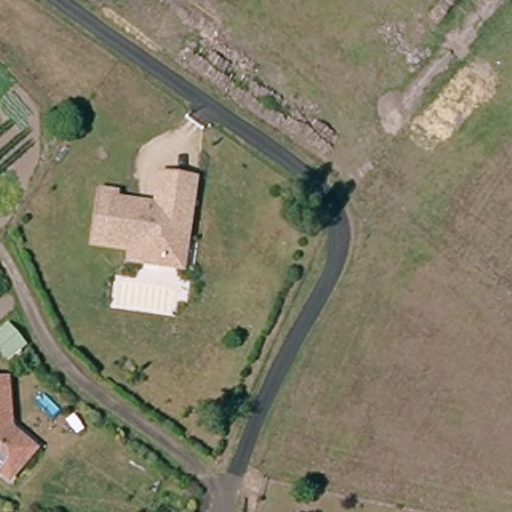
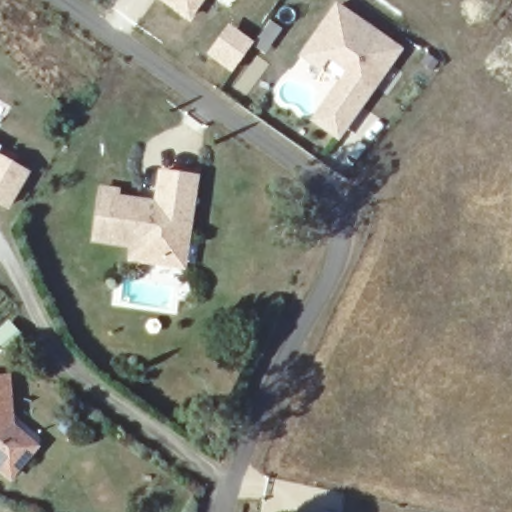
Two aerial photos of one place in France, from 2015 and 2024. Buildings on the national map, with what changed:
new [(190,19),(160,0),(203,0),(190,19)]
new [(339,140),(309,120),(341,78),(300,53),(335,2),(403,48),(339,140)]
new [(253,43),(231,72),(205,54),(228,24),(253,43)]
new [(8,209),(0,205),(0,155),(29,171),(8,209)]
unchanged [(162,262),(139,259),(131,258),(133,243),(95,237),(103,187),(119,189),(118,196),(146,200),(149,204),(147,216),(155,217),(162,171),(197,176),(198,176),(189,235),(184,266),(162,262)]
unchanged [(22,349),(16,354),(6,362),(0,354),(0,342),(0,341),(9,334),(22,349)]
unchanged [(37,447),(31,454),(23,463),(11,477),(0,467),(0,377),(10,377),(13,426),(24,435),(34,445),(37,447)]

